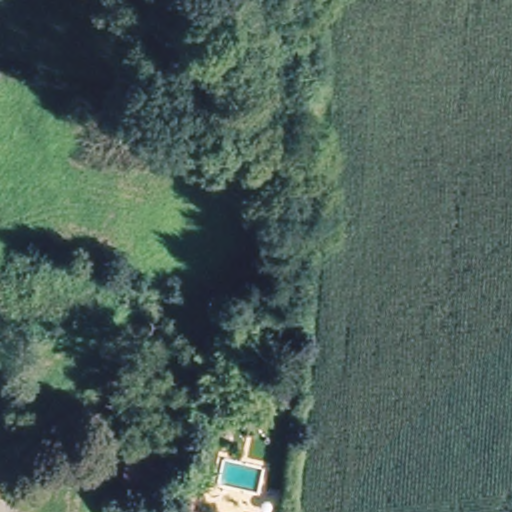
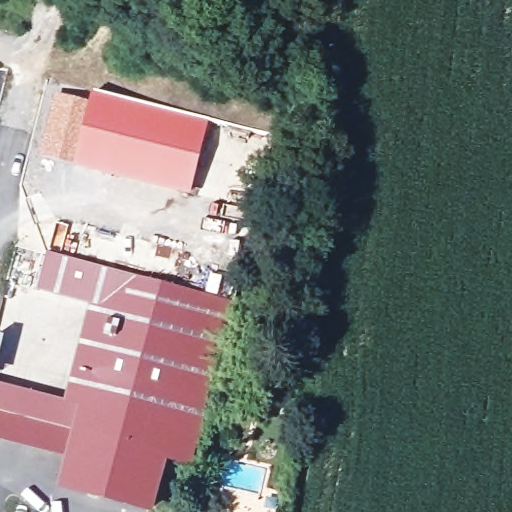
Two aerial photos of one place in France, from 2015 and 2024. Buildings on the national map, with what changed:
new [(90,102),(92,92),(208,122),(190,195),(76,166),(41,157),(55,94),(90,102)]
new [(235,301),(191,467),(167,461),(153,512),(58,488),(67,455),(0,439),(0,384),(64,400),(90,304),(37,291),(47,253),(235,301)]
demolished [(175,442),(161,494),(132,486),(145,434),(175,442)]

